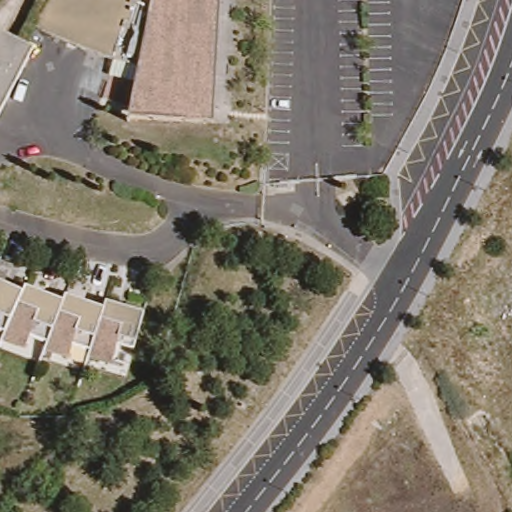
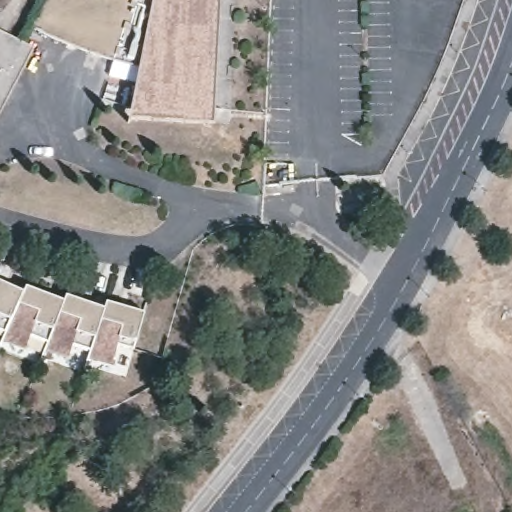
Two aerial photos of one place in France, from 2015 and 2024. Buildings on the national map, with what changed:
unchanged [(91,55),(67,47),(45,39),(32,33),(37,21),(46,0),(212,0),(211,11),(211,25),(210,45),(207,81),(205,128),(120,123),(124,107),(130,77),(132,67),(112,61),(91,55)]
unchanged [(5,36),(3,39),(28,51),(17,73),(3,100),(0,105),(0,32),(5,36)]
unchanged [(21,298),(5,325),(0,334),(0,288),(21,298)]
unchanged [(25,289),(35,293),(62,306),(41,352),(21,344),(15,355),(0,348),(0,334),(5,325),(21,298),(25,289)]
unchanged [(65,300),(103,313),(82,361),(64,356),(59,367),(38,359),(41,352),(62,306),(65,300)]
unchanged [(102,374),(80,365),(82,361),(103,313),(106,308),(140,319),(137,327),(125,361),(110,356),(102,374)]

